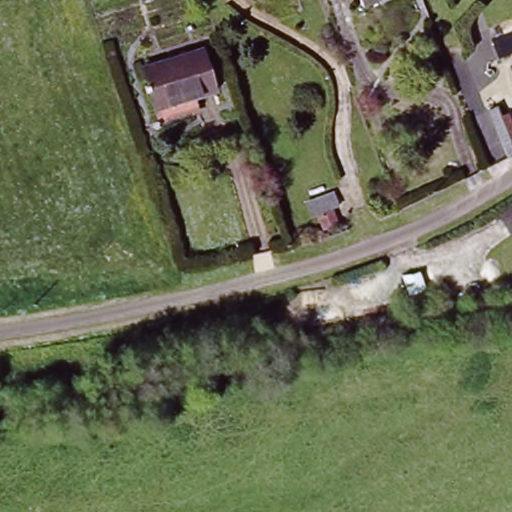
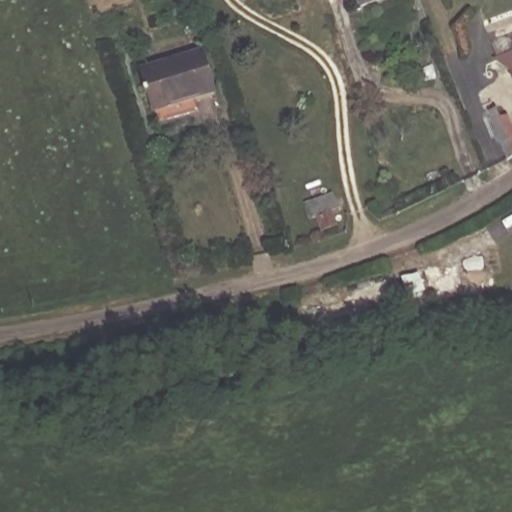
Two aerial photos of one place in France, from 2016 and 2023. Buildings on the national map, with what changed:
unchanged [(358,6),(355,0),(376,0),(366,4),(358,6)]
unchanged [(137,64),(210,45),(219,95),(148,112),(137,64)]
unchanged [(512,62),(512,80),(506,65),(512,62)]
unchanged [(484,108),(492,104),(496,114),(506,111),(512,126),(512,157),(508,160),(484,108)]
unchanged [(301,215),(306,230),(289,236),(282,222),(301,215)]

